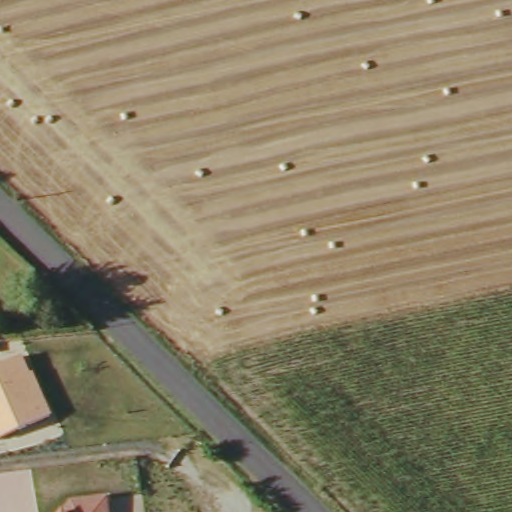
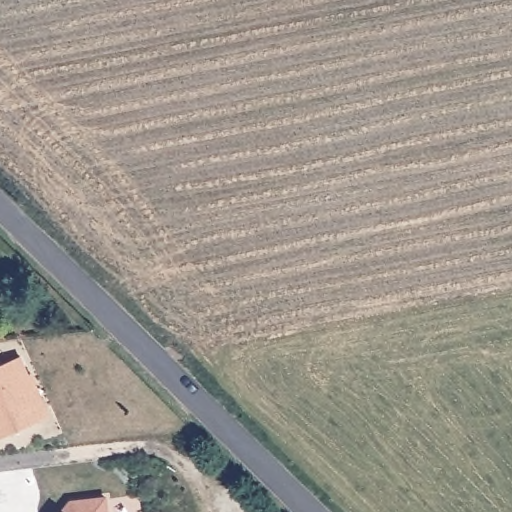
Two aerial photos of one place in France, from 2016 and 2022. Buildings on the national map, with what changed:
unchanged [(0,437),(0,364),(22,355),(30,372),(33,371),(51,413),(0,437)]
unchanged [(105,501),(106,512),(64,512),(70,505),(105,501)]

